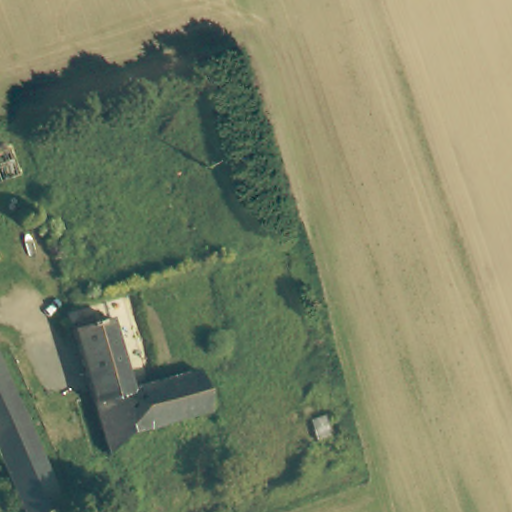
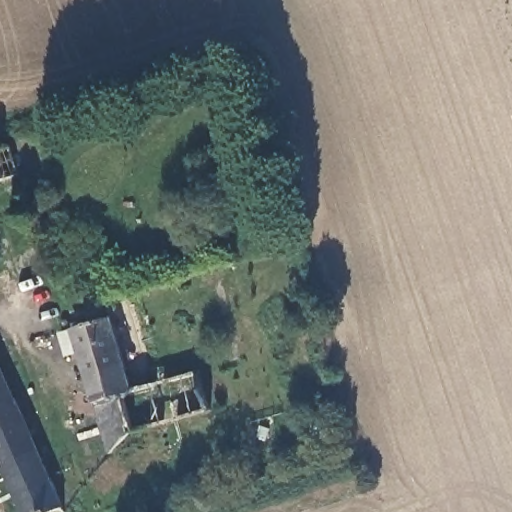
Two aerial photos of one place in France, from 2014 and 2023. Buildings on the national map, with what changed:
unchanged [(12,145),(23,173),(0,180),(0,136),(8,146),(12,145)]
unchanged [(221,399),(147,425),(114,452),(69,329),(84,323),(109,314),(134,386),(209,360),(212,369),(219,394),(221,399)]
unchanged [(0,370),(66,502),(59,506),(44,512),(26,512),(21,500),(0,457),(0,370)]

